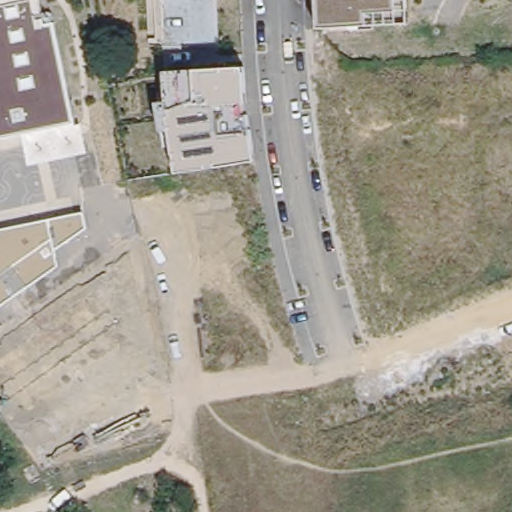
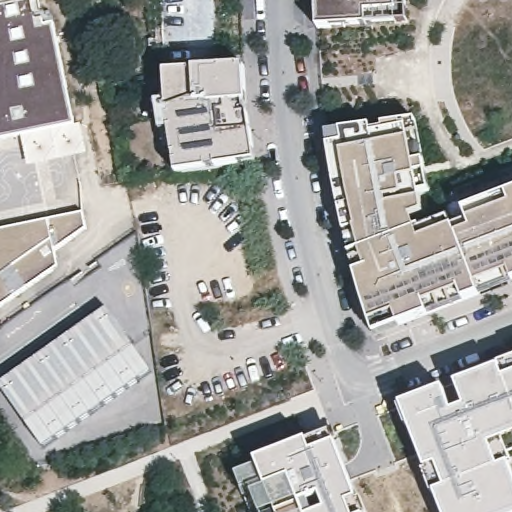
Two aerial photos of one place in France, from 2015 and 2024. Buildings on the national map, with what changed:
unchanged [(77,124),(0,136),(0,0),(52,0),(77,124)]
unchanged [(414,25),(320,28),(318,0),(412,0),(414,25)]
unchanged [(170,130),(161,131),(157,101),(168,100),(166,72),(195,71),(245,67),(247,103),(256,161),(176,173),(170,130)]
new [(430,192),(420,191),(425,214),(414,218),(418,225),(449,212),(453,224),(465,211),(512,193),(512,283),(375,334),(355,273),(347,246),(344,231),(327,132),(417,119),(430,192)]
unchanged [(87,210),(89,226),(58,248),(62,264),(0,307),(0,229),(87,210)]
new [(151,374),(40,449),(0,391),(0,383),(101,311),(151,374)]
new [(512,363),(512,437),(491,445),(500,467),(509,464),(512,472),(512,512),(444,512),(436,491),(447,487),(438,465),(428,469),(404,405),(445,390),(512,363)]
new [(363,512),(277,512),(258,462),(333,433),(363,512)]
new [(277,512),(250,512),(235,471),(258,462),(277,512)]

